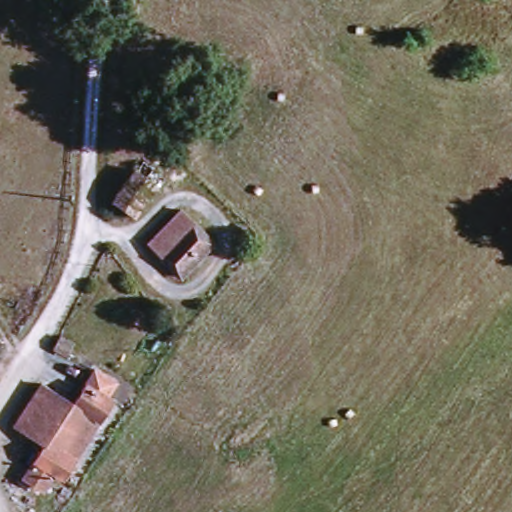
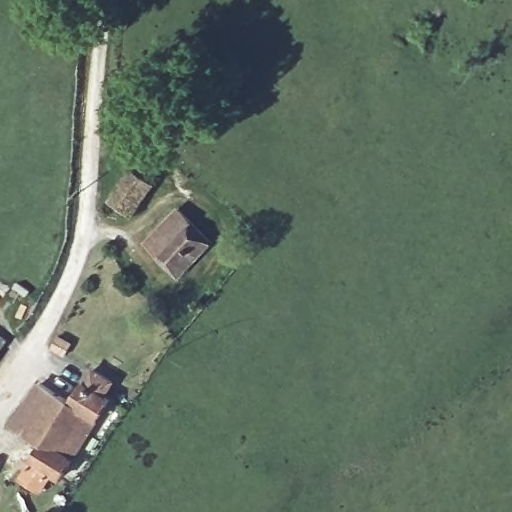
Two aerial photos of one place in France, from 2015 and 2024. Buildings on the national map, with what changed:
unchanged [(109,200),(137,157),(149,164),(141,175),(149,180),(128,212),(109,200)]
unchanged [(209,241),(177,276),(144,244),(176,210),(209,241)]
unchanged [(77,340),(88,347),(78,360),(68,351),(77,340)]
unchanged [(0,347),(0,342),(3,343),(0,347)]
unchanged [(72,398),(89,367),(117,380),(111,391),(116,394),(67,482),(56,475),(44,490),(20,478),(44,439),(13,424),(36,383),(72,398)]

